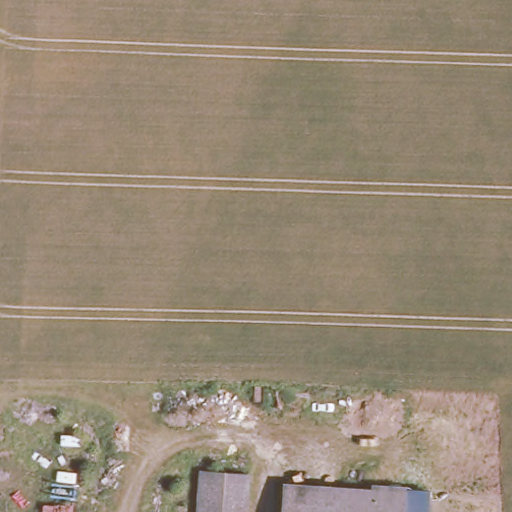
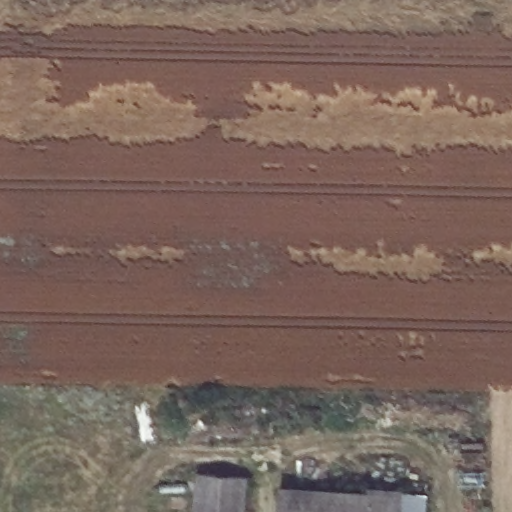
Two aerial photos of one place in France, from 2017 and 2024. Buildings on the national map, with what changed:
unchanged [(196,512),(200,470),(251,472),(249,512),(196,512)]
unchanged [(280,512),(283,479),(408,482),(406,512),(280,512)]

